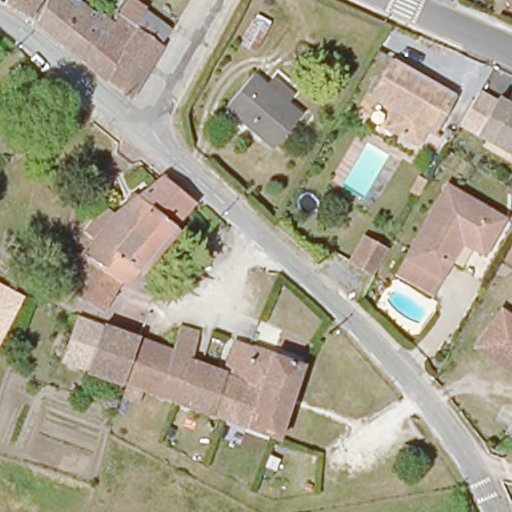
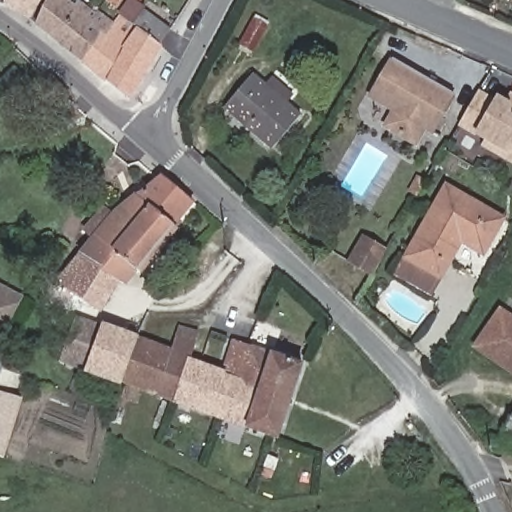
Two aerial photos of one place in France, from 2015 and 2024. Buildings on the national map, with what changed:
demolished [(8,3),(2,0),(10,0),(8,3)]
new [(8,3),(2,0),(10,0),(8,3)]
unchanged [(10,0),(40,0),(30,17),(8,3),(10,0)]
unchanged [(37,24),(48,0),(67,0),(86,17),(92,7),(110,19),(114,22),(119,15),(117,13),(127,0),(137,0),(136,0),(145,6),(145,8),(169,25),(158,43),(161,46),(142,78),(130,99),(120,91),(105,79),(84,62),(37,24)]
unchanged [(117,6),(108,0),(121,0),(117,6)]
unchanged [(254,53),(239,45),(254,18),(268,26),(254,53)]
unchanged [(444,92),(423,130),(416,126),(407,141),(380,126),(388,111),(363,96),(385,59),(444,92)]
unchanged [(225,108),(252,75),(300,114),(271,147),(225,108)]
unchanged [(45,114),(30,96),(50,77),(67,94),(65,96),(45,114)]
unchanged [(477,91),(494,101),(496,97),(507,103),(512,95),(512,162),(483,146),(486,140),(458,124),(477,91)]
unchanged [(186,203),(117,284),(112,281),(94,309),(50,283),(109,212),(154,177),(186,203)]
unchanged [(400,276),(409,260),(451,189),(508,222),(487,258),(465,245),(443,280),(434,297),(400,276)]
unchanged [(371,274),(350,261),(364,237),(385,250),(371,274)]
unchanged [(24,296),(0,342),(0,284),(24,296)]
unchanged [(501,309),(512,317),(512,367),(511,366),(507,371),(475,348),(501,309)]
unchanged [(56,363),(72,318),(131,338),(121,374),(119,384),(56,363)]
unchanged [(121,374),(131,338),(166,351),(172,334),(190,340),(184,356),(220,369),(229,342),(296,366),(273,438),(133,389),(129,402),(117,398),(121,385),(119,384),(121,374)]
new [(4,458),(0,457),(0,390),(23,397),(4,458)]
unchanged [(512,415),(512,437),(503,432),(512,415)]

